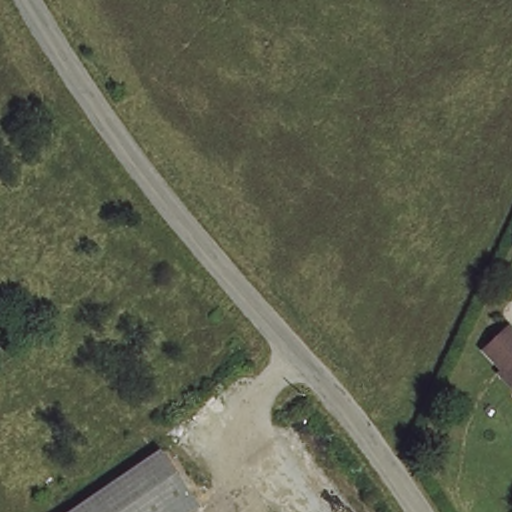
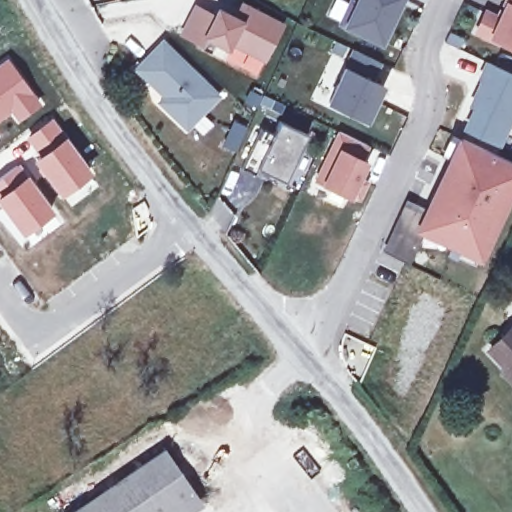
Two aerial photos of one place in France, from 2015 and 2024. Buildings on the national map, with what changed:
new [(356,4),(360,6),(363,0),(405,0),(385,43),(345,24),(356,4)]
new [(502,44),(481,33),(490,14),(504,21),(511,6),(509,5),(511,0),(512,0),(512,47),(503,42),(502,44)]
new [(247,6),(251,8),(244,22),(239,20),(247,6)]
new [(186,34),(200,8),(219,18),(223,11),(244,22),(251,8),(287,27),(270,62),(235,44),(232,49),(210,38),(206,45),(186,34)]
new [(222,97),(191,129),(164,103),(169,97),(141,70),(167,43),(222,97)]
new [(384,64),(375,82),(387,88),(371,123),(333,104),(358,52),(384,64)]
new [(7,57),(41,102),(15,120),(10,112),(0,119),(0,62),(7,57)]
new [(475,107),(488,81),(484,80),(492,65),(512,74),(512,126),(502,147),(469,131),(480,110),(475,107)]
new [(59,195),(32,160),(39,154),(26,139),(52,117),(65,134),(91,170),(59,195)]
new [(265,128),(277,134),(283,121),(311,135),(289,182),(261,169),(258,175),(245,169),(265,128)]
new [(343,133),(371,147),(364,161),(370,164),(362,180),(370,184),(362,200),(355,196),(353,199),(319,182),(343,133)]
new [(508,206),(483,259),(453,245),(456,239),(444,233),(441,239),(422,230),(447,177),(449,178),(456,162),(455,161),(465,139),(512,162),(512,194),(507,205),(508,206)]
new [(20,162),(54,210),(21,235),(0,208),(0,177),(20,162)]
unchanged [(510,370),(490,350),(512,329),(512,377),(508,372),(510,370)]
unchanged [(75,512),(166,450),(203,504),(191,512),(75,512)]

